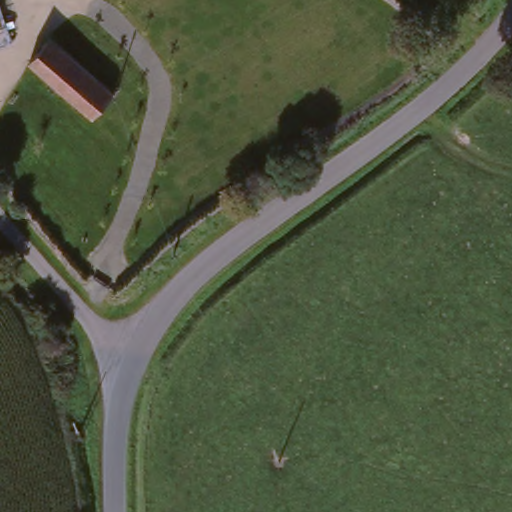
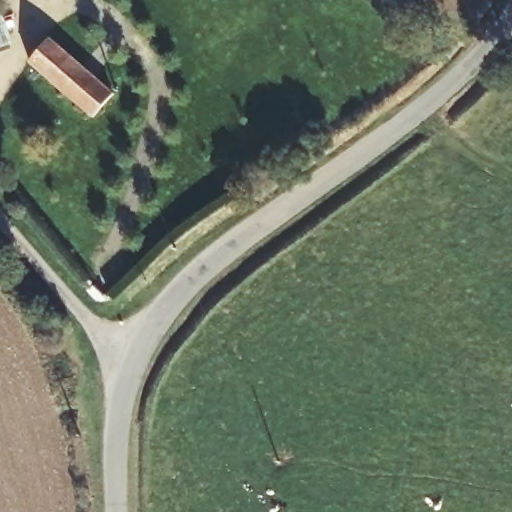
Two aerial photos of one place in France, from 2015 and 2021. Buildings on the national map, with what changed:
unchanged [(0,7),(1,9),(0,9),(0,7)]
unchanged [(36,61),(56,39),(115,96),(91,117),(36,61)]

